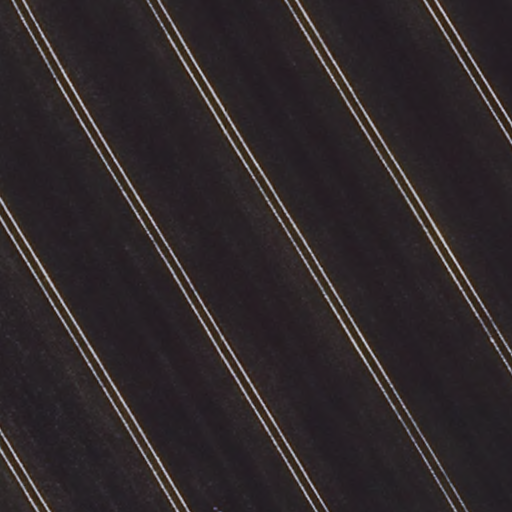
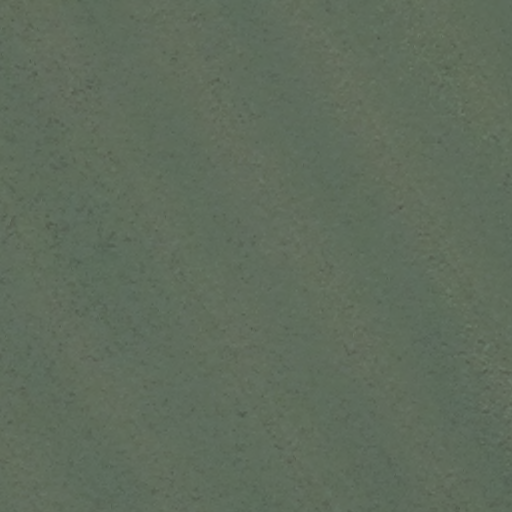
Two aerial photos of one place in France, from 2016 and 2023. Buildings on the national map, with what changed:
[]

